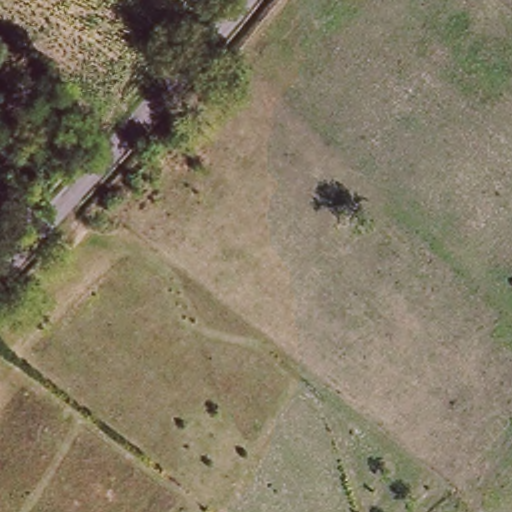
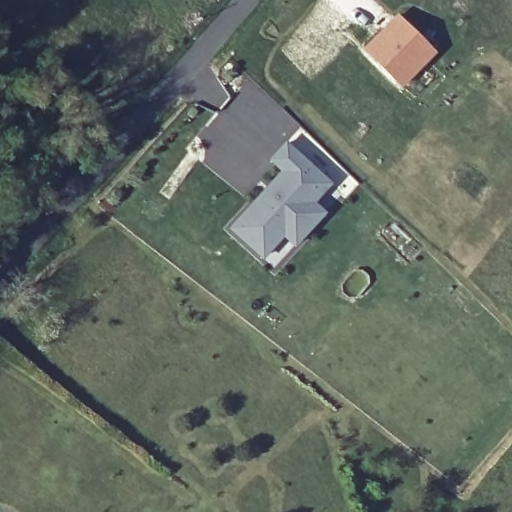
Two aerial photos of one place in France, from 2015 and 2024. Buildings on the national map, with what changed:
new [(398,13),(436,53),(403,89),(363,49),(398,13)]
new [(332,185),(315,203),(327,214),(295,250),(284,240),(264,262),(229,229),(279,172),(270,163),(286,143),(332,185)]

